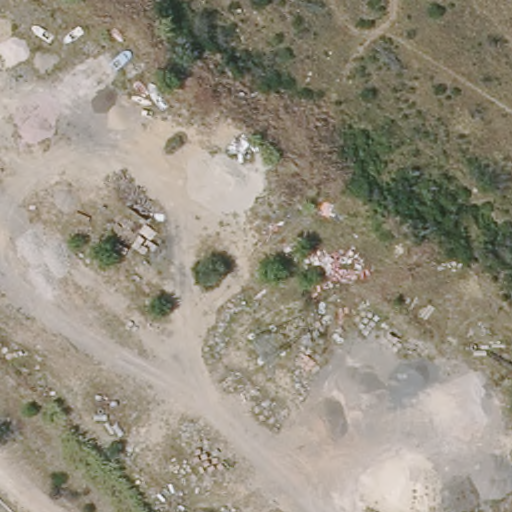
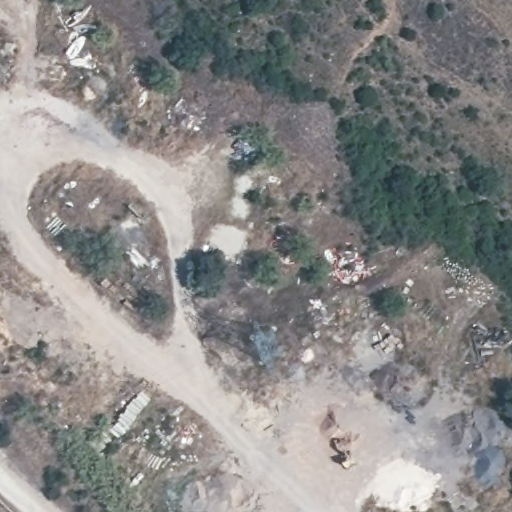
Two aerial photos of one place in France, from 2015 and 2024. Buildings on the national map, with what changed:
[]

